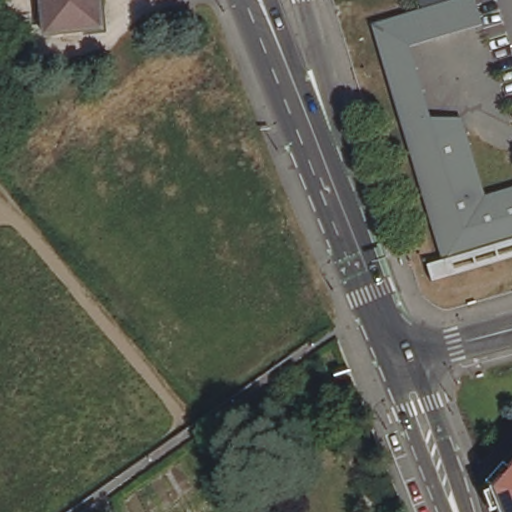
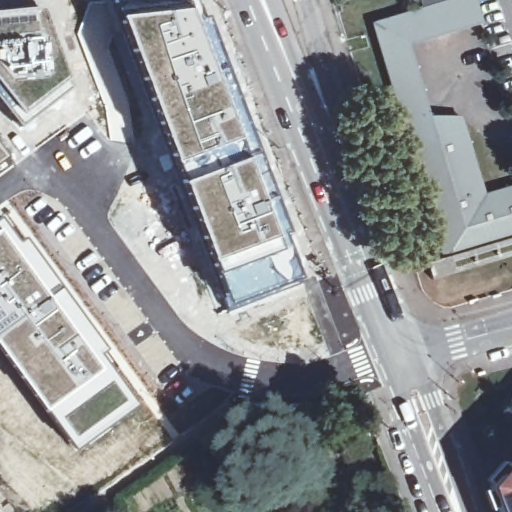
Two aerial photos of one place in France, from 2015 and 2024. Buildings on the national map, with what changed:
unchanged [(43,0),(100,0),(102,25),(46,31),(43,2),(43,0)]
new [(135,1),(120,0),(122,0),(193,0),(202,35),(227,93),(232,91),(257,152),(180,181),(119,24),(116,12),(136,7),(135,1)]
unchanged [(449,0),(477,0),(481,15),(484,23),(406,46),(402,37),(398,38),(379,44),(373,23),(419,9),(449,0)]
unchanged [(384,59),(379,44),(398,38),(402,37),(406,46),(429,114),(402,122),(384,59)]
unchanged [(512,186),(512,242),(445,262),(402,122),(429,114),(430,119),(463,119),(466,129),(486,194),(512,186)]
new [(257,152),(273,194),(288,246),(215,273),(180,181),(257,152)]
new [(22,240),(24,238),(60,285),(47,294),(11,243),(0,231),(0,216),(1,215),(22,240)]
new [(47,294),(102,371),(51,412),(54,417),(51,419),(45,412),(0,351),(0,231),(11,243),(47,294)]
new [(288,246),(299,277),(229,305),(215,273),(288,246)]
new [(60,285),(106,350),(102,353),(110,365),(102,371),(47,294),(60,285)]
unchanged [(484,488),(512,454),(512,512),(493,512),(484,488)]

